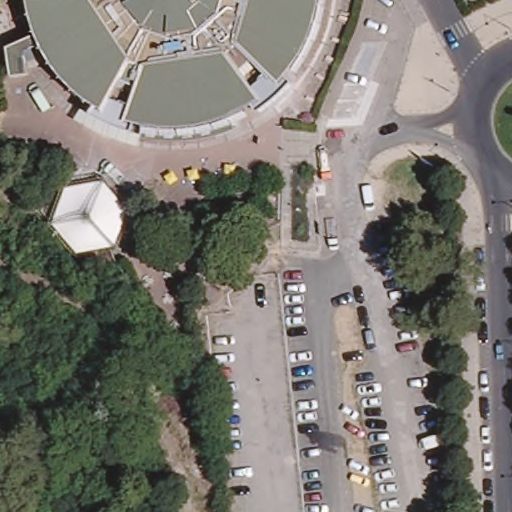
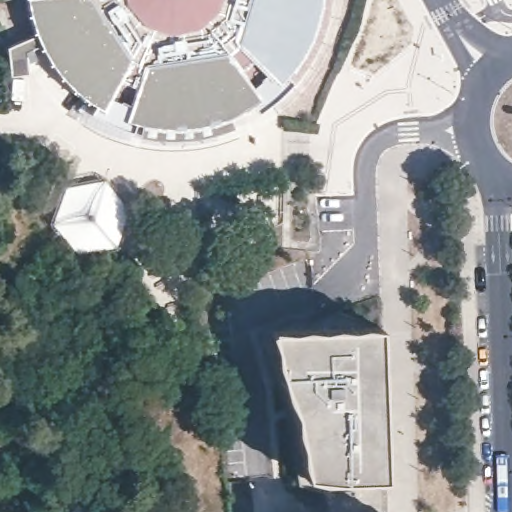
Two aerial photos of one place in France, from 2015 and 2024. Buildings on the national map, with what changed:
unchanged [(13,78),(9,50),(41,36),(37,26),(30,0),(321,0),(316,23),(311,36),(298,60),(285,75),(281,81),(275,86),(253,103),(228,115),(201,122),(196,123),(168,124),(140,120),(114,111),(100,104),(78,88),(60,68),(58,66),(45,46),(35,51),(39,60),(29,65),(31,76),(13,78)]
unchanged [(311,85),(292,105),(279,116),(269,124),(259,131),(253,120),(261,115),(252,103),(253,103),(275,86),(281,81),(285,75),(295,84),(302,77),(311,85)]
unchanged [(140,120),(135,134),(144,136),(141,149),(121,143),(105,136),(91,129),(77,121),(84,111),(92,116),(100,104),(114,111),(140,120)]
unchanged [(126,212),(113,248),(75,254),(51,225),(64,189),(101,183),(126,212)]
new [(293,412),(270,330),(380,326),(386,479),(306,478),(293,412)]

